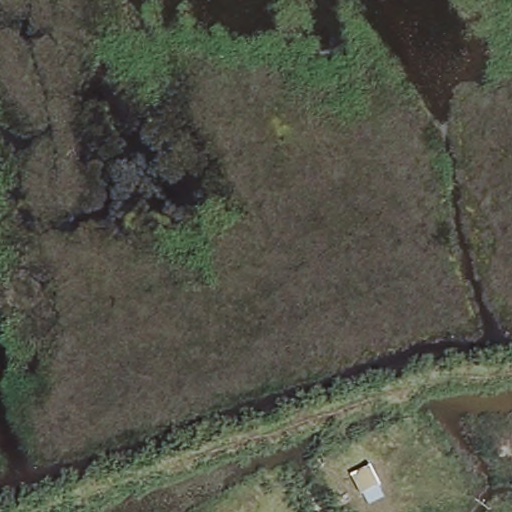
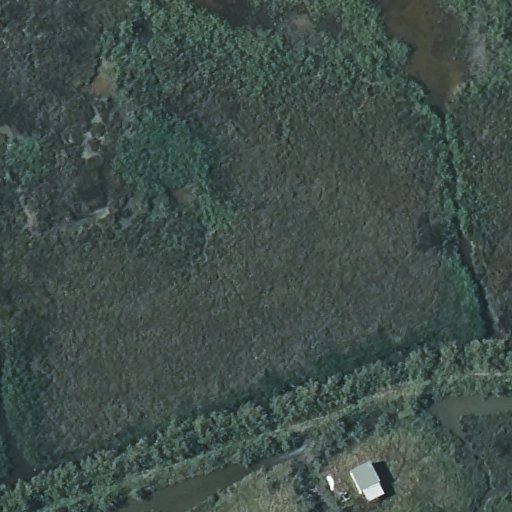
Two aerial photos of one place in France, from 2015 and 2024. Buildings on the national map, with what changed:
unchanged [(381,489),(358,500),(348,477),(370,467),(381,489)]

